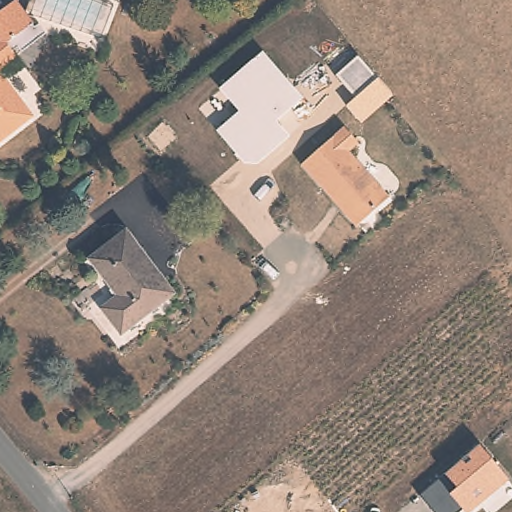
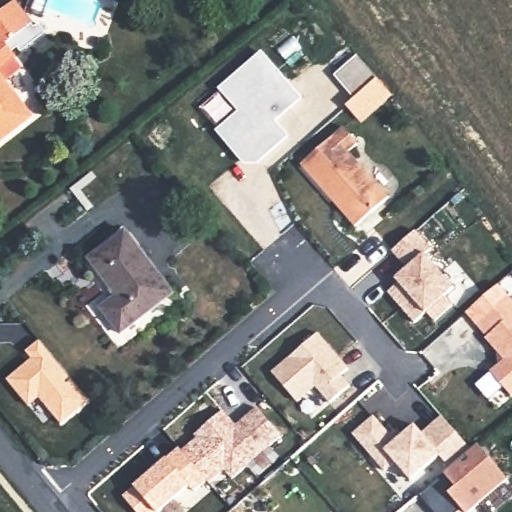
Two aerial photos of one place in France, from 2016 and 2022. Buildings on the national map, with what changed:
unchanged [(17,0),(35,28),(40,24),(47,33),(22,52),(19,48),(14,51),(17,56),(0,70),(0,12),(16,0),(17,0)]
unchanged [(218,90),(261,51),(302,98),(275,120),(287,135),(256,164),(243,163),(215,131),(238,111),(218,90)]
unchanged [(391,94),(361,123),(345,107),(353,98),(333,76),(356,56),(391,94)]
unchanged [(0,141),(0,72),(7,81),(33,116),(18,128),(0,141)]
unchanged [(303,165),(346,128),(360,145),(350,153),(390,199),(357,228),(343,211),(334,201),(303,165)]
unchanged [(175,295),(122,337),(100,309),(116,297),(88,260),(126,230),(175,295)]
new [(407,290),(403,284),(399,281),(411,270),(396,253),(419,232),(435,250),(429,256),(458,290),(449,298),(457,307),(438,323),(431,314),(419,325),(397,300),(392,294),(402,285),(407,290)]
new [(490,371),(504,359),(474,326),(509,296),(512,299),(512,394),(490,371)]
new [(347,367),(339,374),(349,385),(329,403),(315,387),(298,403),(273,373),(321,332),(347,367)]
new [(225,412),(238,427),(259,409),(283,437),(234,480),(197,437),(225,412)]
new [(446,465),(440,453),(409,479),(396,461),(383,467),(354,433),(374,415),(399,438),(414,424),(425,437),(441,417),(467,446),(446,465)]
unchanged [(419,497),(477,446),(506,479),(470,512),(466,512),(463,510),(461,512),(433,512),(419,497)]
new [(181,451),(208,483),(195,494),(190,489),(164,512),(136,512),(125,500),(181,451)]

